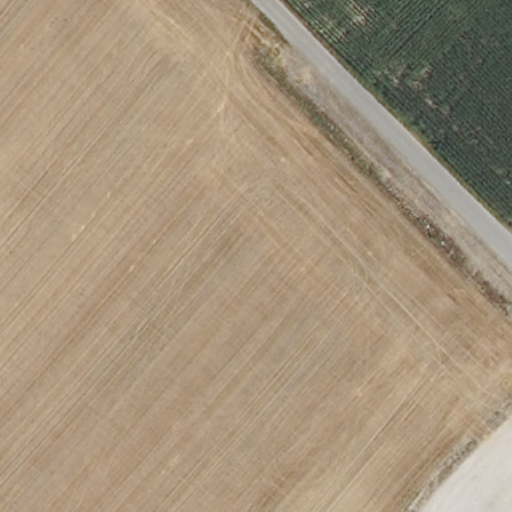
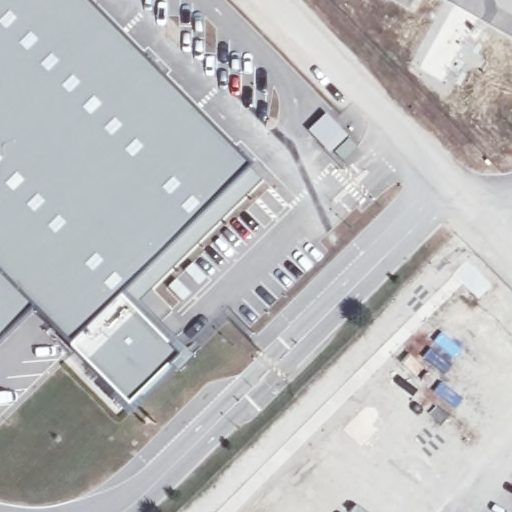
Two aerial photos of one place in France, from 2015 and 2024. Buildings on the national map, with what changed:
new [(118,300),(179,357),(132,407),(68,344),(34,311),(0,345),(0,0),(85,0),(251,171),(118,300)]

